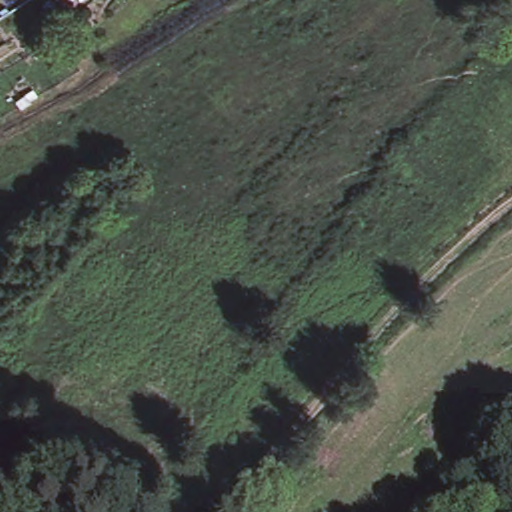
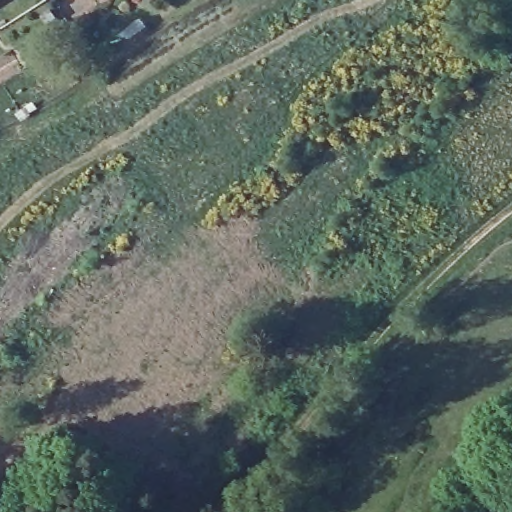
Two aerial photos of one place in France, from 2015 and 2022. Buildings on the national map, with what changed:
unchanged [(0,2),(0,0),(3,0),(0,2)]

